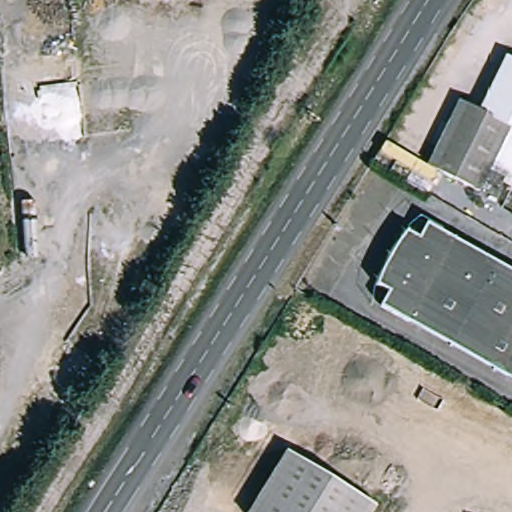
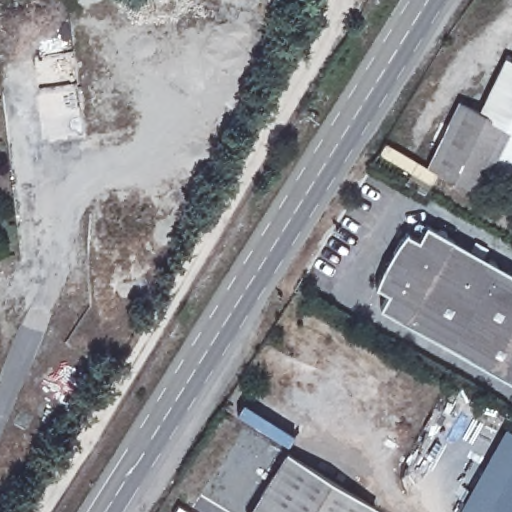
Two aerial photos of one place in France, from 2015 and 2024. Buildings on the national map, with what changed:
unchanged [(503,57),(512,62),(512,129),(477,111),(503,57)]
unchanged [(482,192),(428,165),(459,102),(477,111),(512,129),(482,192)]
unchanged [(390,298),(377,289),(387,259),(410,235),(420,240),(428,226),(512,272),(512,374),(509,379),(383,310),(390,298)]
unchanged [(509,379),(512,374),(512,381),(509,379)]
new [(512,431),(512,512),(458,512),(505,427),(512,431)]
unchanged [(382,509),(380,512),(263,512),(298,457),(382,509)]

